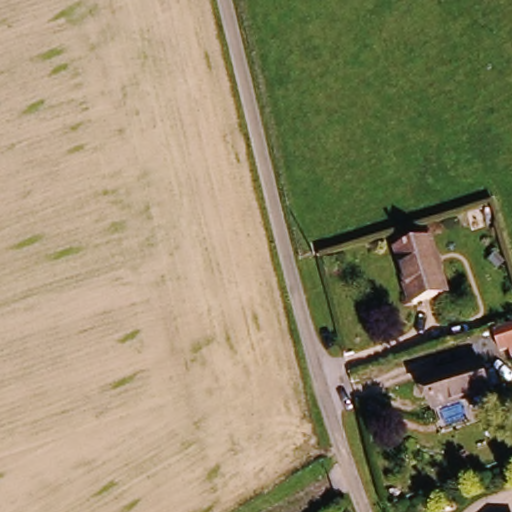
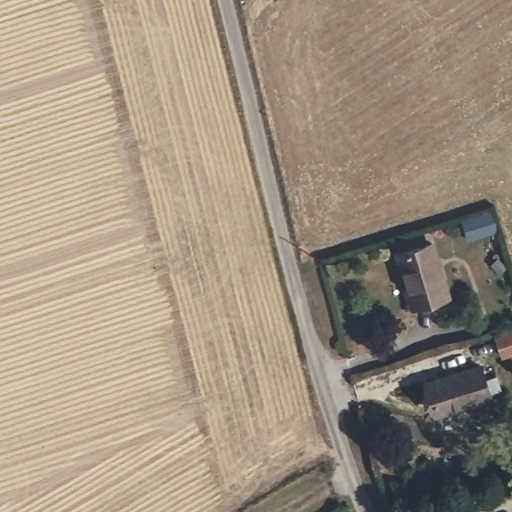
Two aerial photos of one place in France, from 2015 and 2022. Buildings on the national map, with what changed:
unchanged [(449,293),(416,302),(401,248),(435,239),(449,293)]
unchanged [(491,397),(435,412),(426,381),(479,363),(491,397)]

